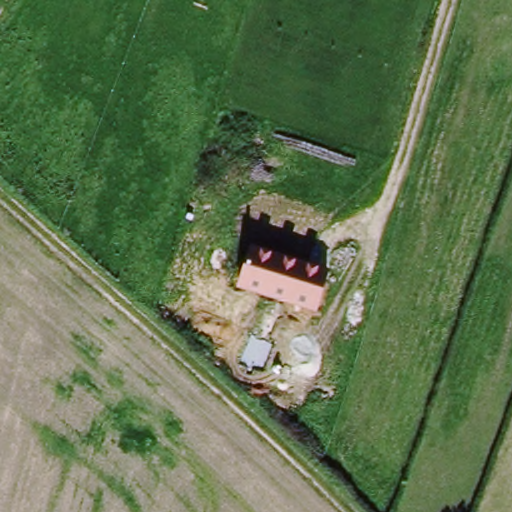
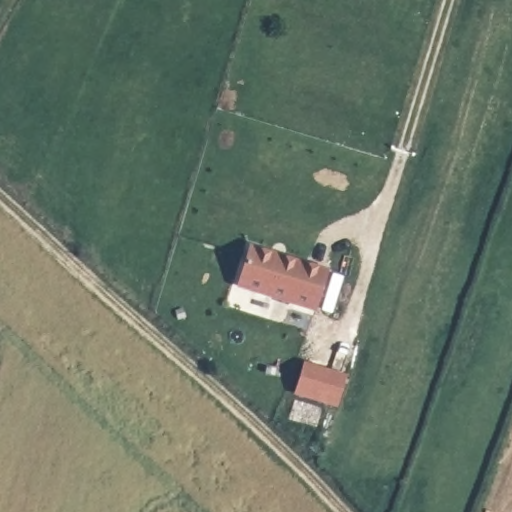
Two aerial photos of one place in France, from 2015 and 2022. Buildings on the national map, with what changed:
unchanged [(248,245),(327,270),(313,314),(237,287),(248,245)]
new [(350,376),(340,408),(295,394),(303,363),(350,376)]

